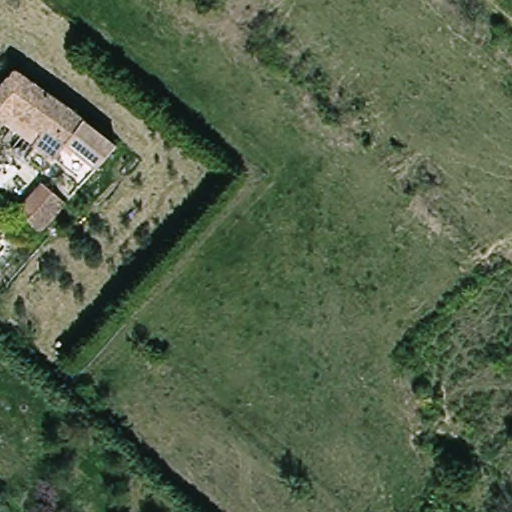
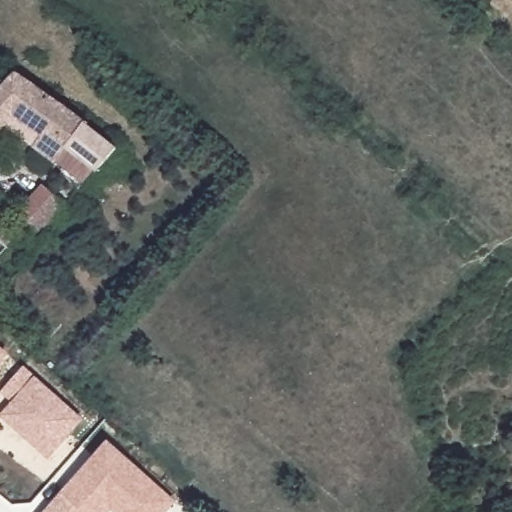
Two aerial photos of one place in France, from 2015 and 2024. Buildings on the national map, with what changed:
unchanged [(0,82),(9,70),(65,109),(116,148),(95,171),(66,147),(55,162),(35,146),(3,122),(0,125),(0,82)]
unchanged [(16,214),(42,184),(65,204),(39,234),(16,214)]
new [(0,348),(8,353),(0,363),(0,348)]
new [(0,415),(11,402),(1,391),(24,366),(84,419),(48,459),(0,416),(0,415)]
new [(112,512),(111,510),(109,512),(43,512),(107,440),(177,501),(167,512),(112,512)]

